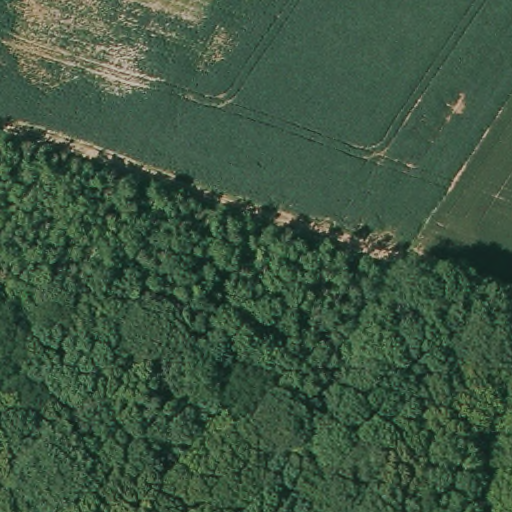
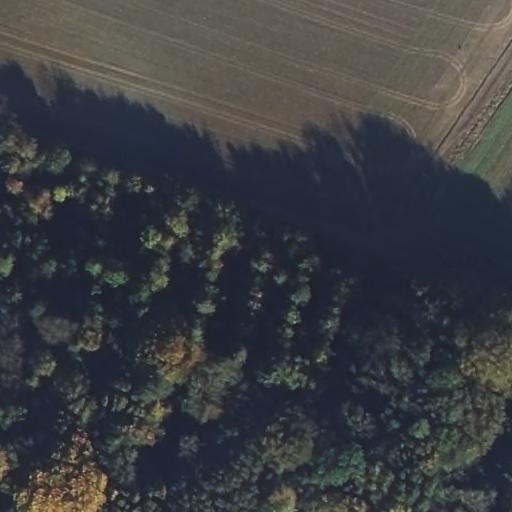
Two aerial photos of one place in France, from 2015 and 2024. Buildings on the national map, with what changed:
unchanged [(460,453),(440,447),(465,398),(480,403),(460,453)]

